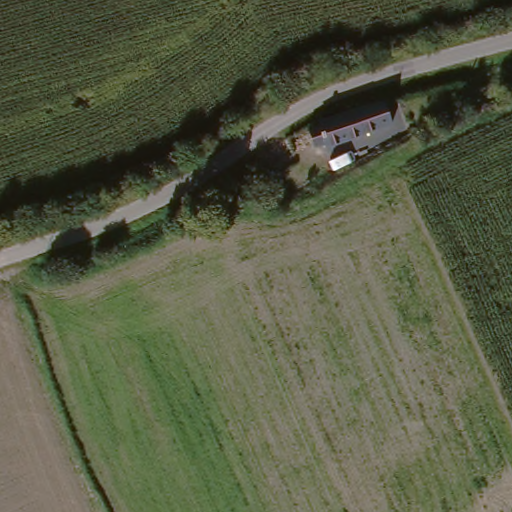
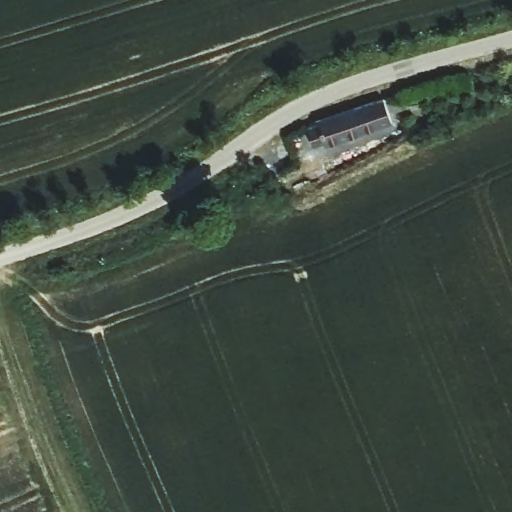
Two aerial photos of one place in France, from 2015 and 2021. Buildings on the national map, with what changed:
unchanged [(355,112),(365,140),(327,150),(318,124),(355,112)]

